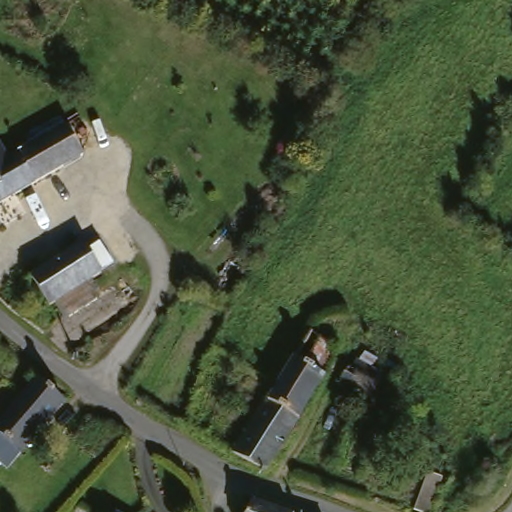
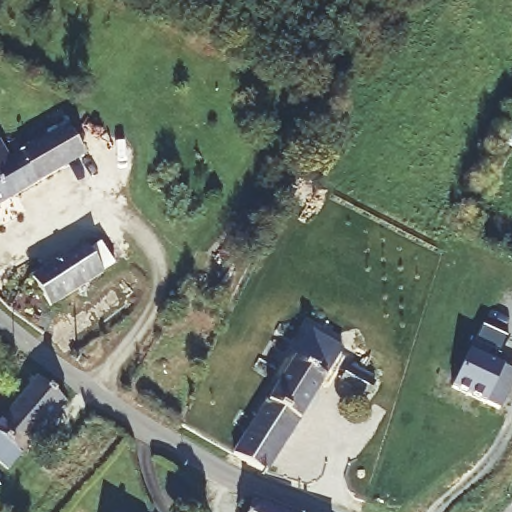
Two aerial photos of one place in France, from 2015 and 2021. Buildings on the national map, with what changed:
unchanged [(63,134),(80,163),(0,212),(0,169),(1,170),(63,134)]
unchanged [(89,244),(110,275),(97,283),(45,318),(24,287),(77,252),(89,244)]
new [(483,327),(511,338),(503,357),(497,355),(494,363),(512,371),(512,393),(505,411),(457,391),(483,327)]
unchanged [(310,330),(335,346),(322,376),(262,473),(249,464),(232,453),(310,330)]
unchanged [(376,384),(364,400),(339,380),(351,365),(376,384)]
unchanged [(52,394),(64,405),(4,471),(0,468),(0,420),(36,380),(52,394)]
unchanged [(256,512),(258,506),(275,512),(256,512)]

